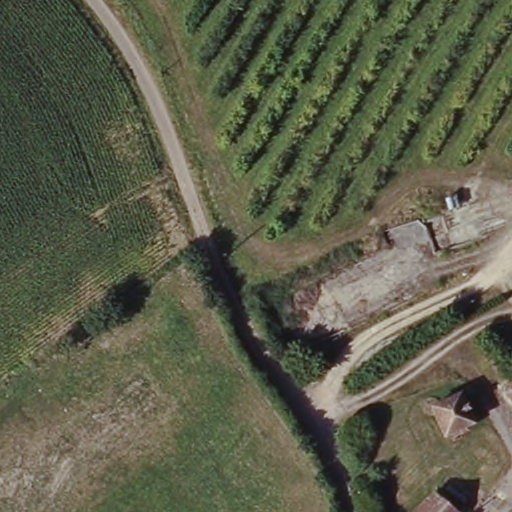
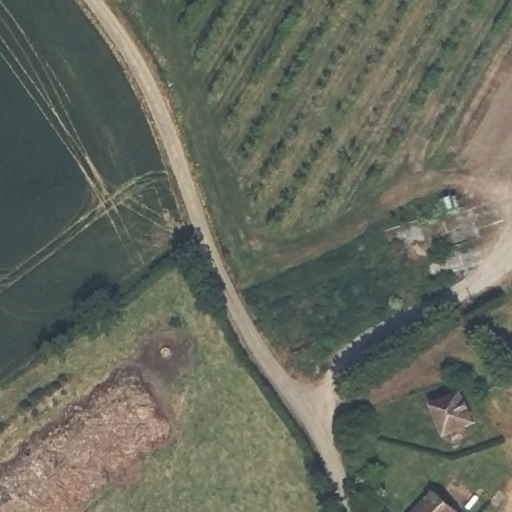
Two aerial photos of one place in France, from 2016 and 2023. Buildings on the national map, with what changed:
unchanged [(428,411),(461,391),(482,426),(446,446),(428,411)]
unchanged [(454,508),(452,512),(413,512),(427,492),(454,508)]

